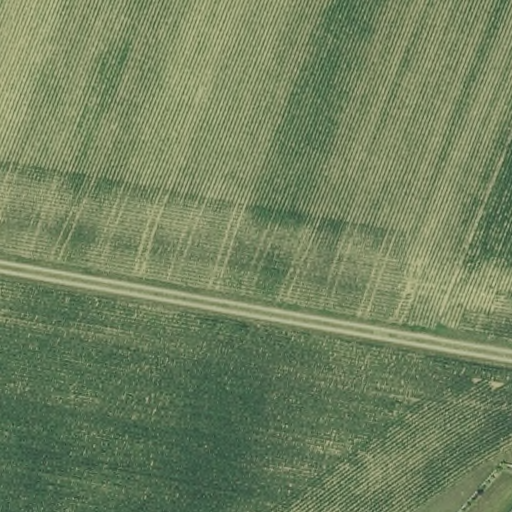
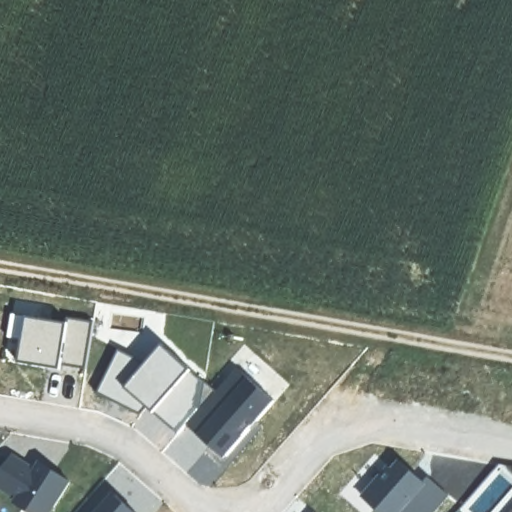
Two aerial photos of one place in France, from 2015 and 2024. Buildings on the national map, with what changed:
new [(95,319),(88,371),(62,367),(62,373),(16,364),(22,305),(95,319)]
new [(225,462),(190,429),(182,437),(146,408),(145,417),(102,395),(124,353),(144,361),(162,339),(220,387),(244,363),(284,395),(225,462)]
new [(0,476),(10,455),(41,473),(46,465),(74,481),(55,512),(25,512),(20,509),(25,500),(0,485),(0,476)]
new [(425,481),(429,477),(450,495),(435,512),(378,512),(359,493),(397,458),(425,481)]
new [(95,512),(112,493),(134,512),(95,512)]
unchanged [(510,512),(512,510),(512,512),(510,512)]

